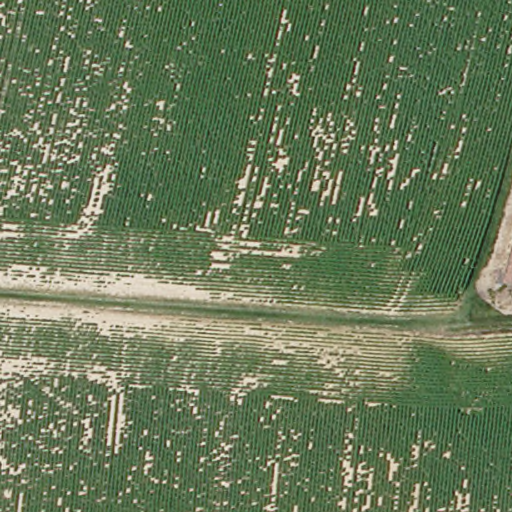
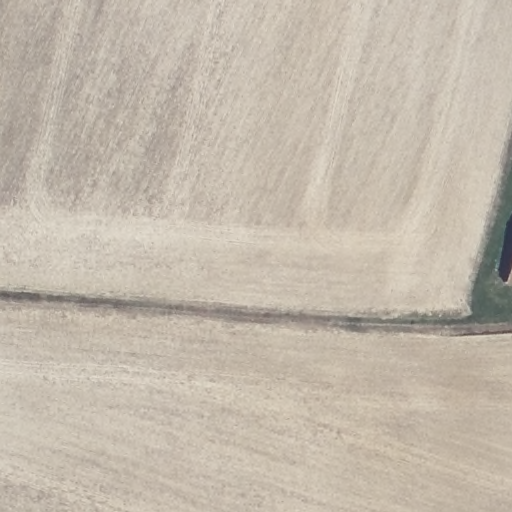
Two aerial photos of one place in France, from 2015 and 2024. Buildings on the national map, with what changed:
unchanged [(512,224),(512,281),(496,277),(512,224)]
unchanged [(512,294),(512,299),(510,298),(512,294)]

